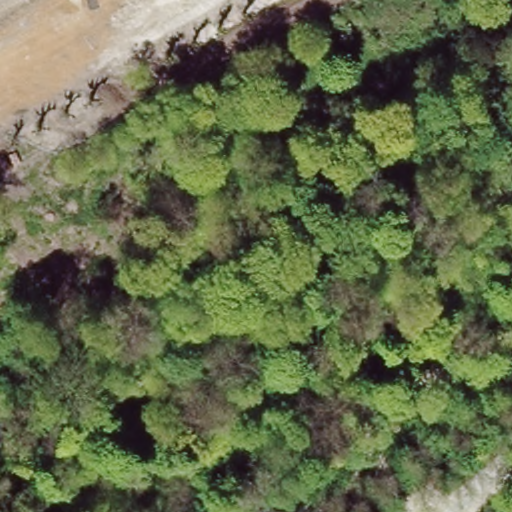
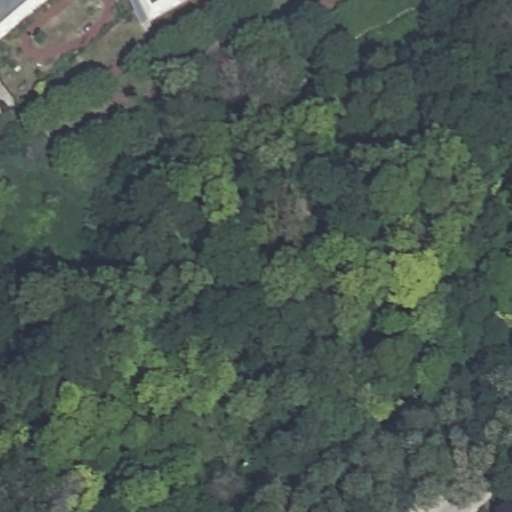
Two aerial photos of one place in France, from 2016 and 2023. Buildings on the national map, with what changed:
new [(0,36),(0,0),(44,0),(0,36)]
new [(147,20),(136,0),(182,0),(147,20)]

